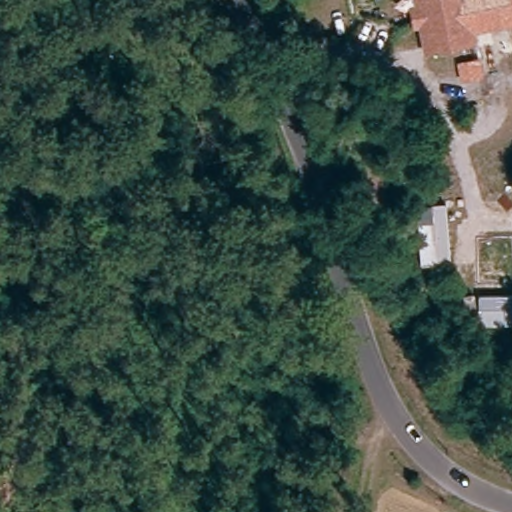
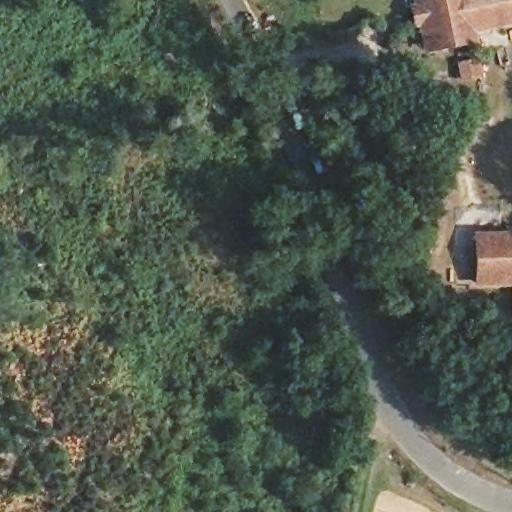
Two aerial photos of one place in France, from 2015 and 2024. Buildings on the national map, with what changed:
unchanged [(413,14),(406,14),(405,1),(412,0),(457,0),(462,38),(440,41),(418,44),(417,37),(413,14)]
unchanged [(512,28),(462,38),(457,0),(510,0),(512,2),(512,28)]
unchanged [(512,0),(512,2),(510,0),(512,0)]
unchanged [(450,264),(419,267),(415,208),(446,204),(450,264)]
new [(512,287),(481,288),(480,242),(512,241),(512,287)]
unchanged [(512,326),(478,327),(477,295),(512,294),(512,326)]

